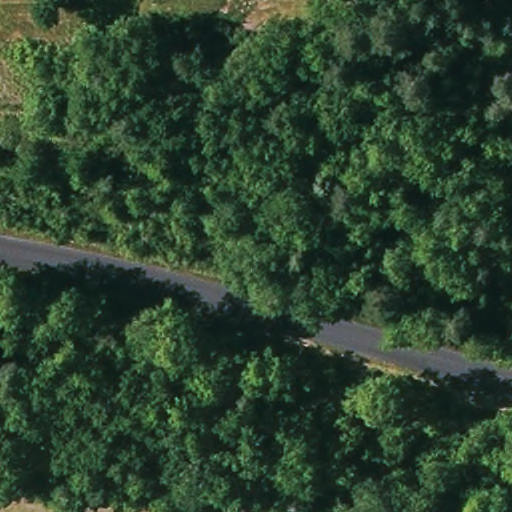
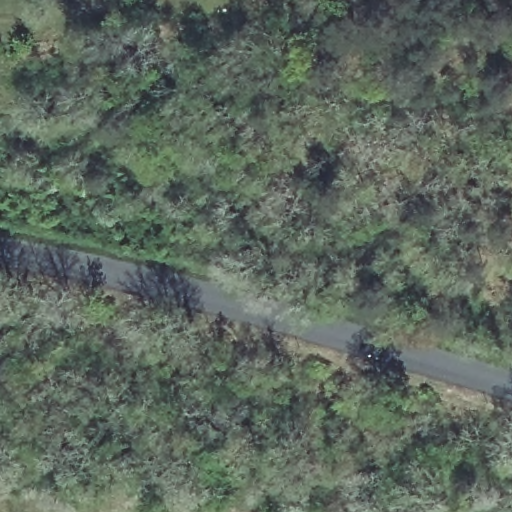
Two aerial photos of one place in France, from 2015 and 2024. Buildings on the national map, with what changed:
unchanged [(386,112),(384,131),(364,129),(367,110),(386,112)]

